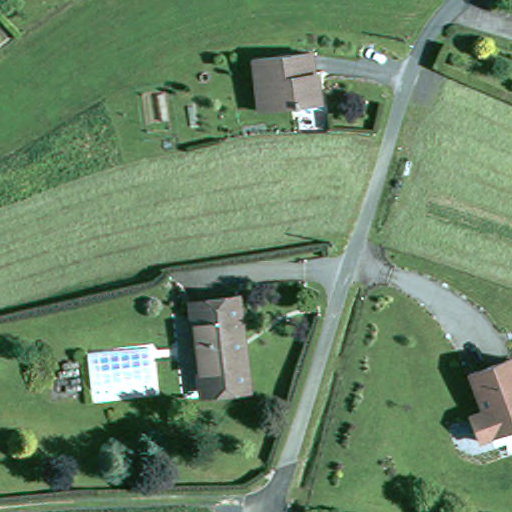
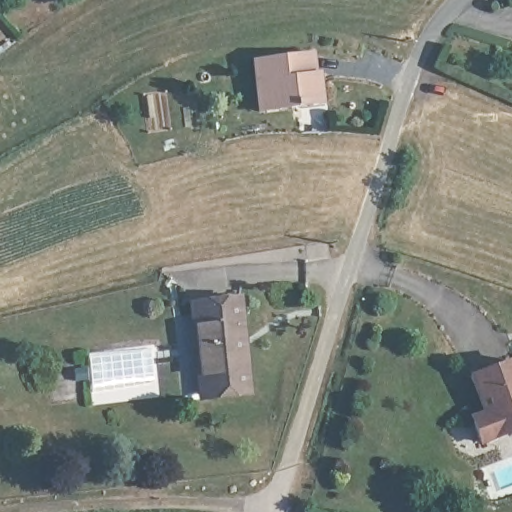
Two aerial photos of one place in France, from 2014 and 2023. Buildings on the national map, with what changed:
unchanged [(252,61),(312,52),(315,72),(309,73),(310,85),(320,84),(323,105),(259,113),(252,61)]
unchanged [(236,306),(254,391),(212,399),(193,315),(236,306)]
unchanged [(487,438),(478,412),(492,409),(478,371),(512,359),(512,428),(487,438)]

